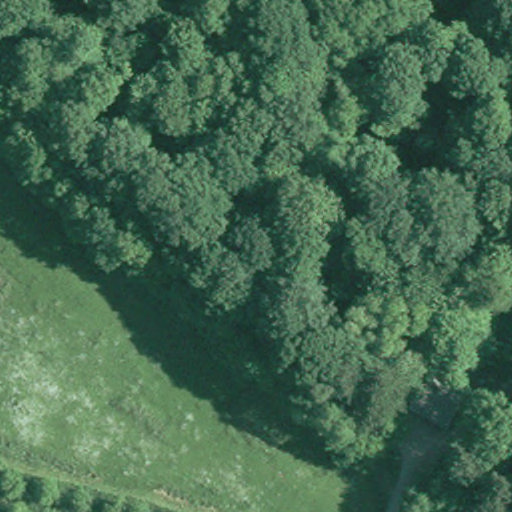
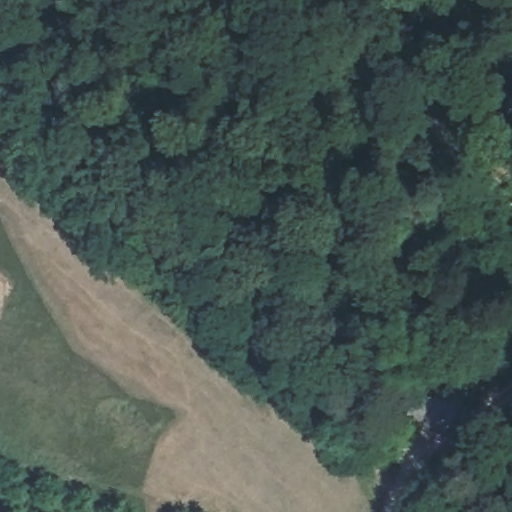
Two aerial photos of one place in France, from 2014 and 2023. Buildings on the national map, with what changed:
unchanged [(461,396),(437,419),(417,399),(442,377),(461,396)]

